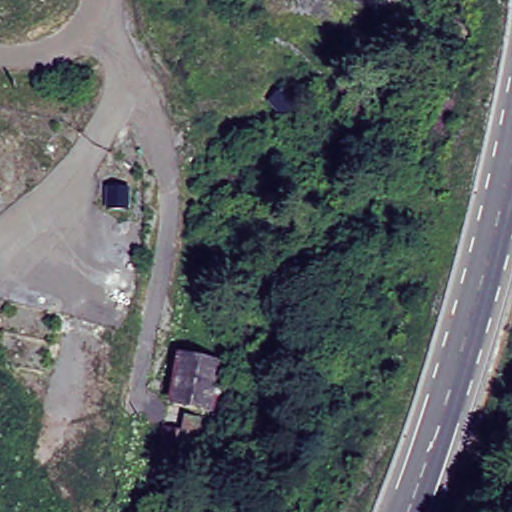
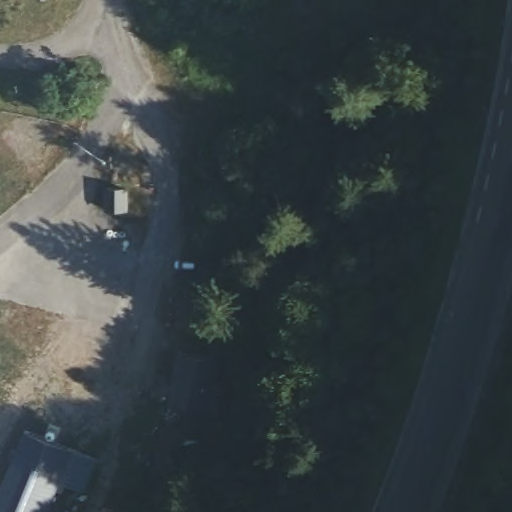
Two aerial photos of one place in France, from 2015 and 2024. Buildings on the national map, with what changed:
unchanged [(225,355),(222,376),(238,380),(233,407),(175,393),(181,348),(225,355)]
unchanged [(161,423),(163,407),(187,413),(182,443),(168,440),(161,478),(132,473),(143,418),(161,423)]
new [(61,486),(50,512),(0,512),(0,493),(27,429),(99,459),(84,495),(61,486)]

